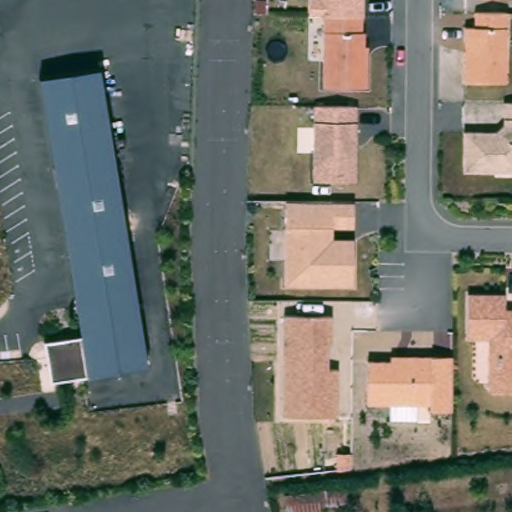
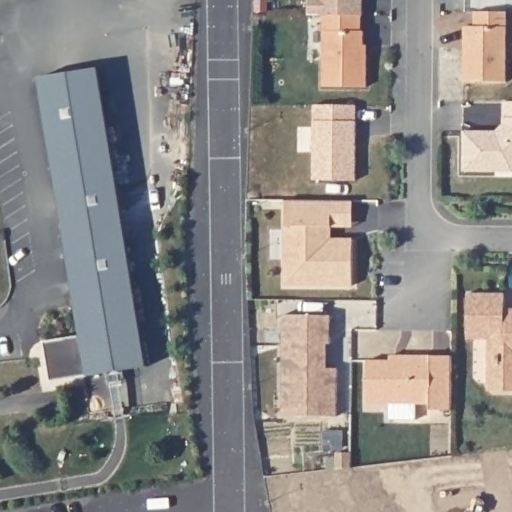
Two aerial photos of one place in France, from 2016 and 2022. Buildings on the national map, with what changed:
unchanged [(367,89),(322,87),(322,19),(309,18),(309,0),(366,0),(367,89)]
unchanged [(507,11),(506,82),(463,82),(464,27),(473,27),(473,12),(507,11)]
unchanged [(100,70),(151,367),(48,377),(43,344),(82,338),(40,79),(100,70)]
unchanged [(512,173),(463,173),(463,132),(493,133),(503,123),(503,104),(512,104),(512,173)]
unchanged [(312,122),(312,105),(355,106),(354,122),(354,180),(312,180),(312,122)]
unchanged [(354,229),(332,228),(332,238),(354,239),(354,286),(286,287),(286,285),(287,201),(352,202),(354,229)]
unchanged [(505,309),(512,309),(512,394),(487,394),(487,341),(467,341),(467,294),(505,294),(505,309)]
unchanged [(281,316),(327,315),(328,368),(336,369),(336,414),(282,415),(281,316)]
unchanged [(391,360),(390,355),(452,356),(452,412),(431,412),(431,407),(366,405),(367,361),(391,360)]

